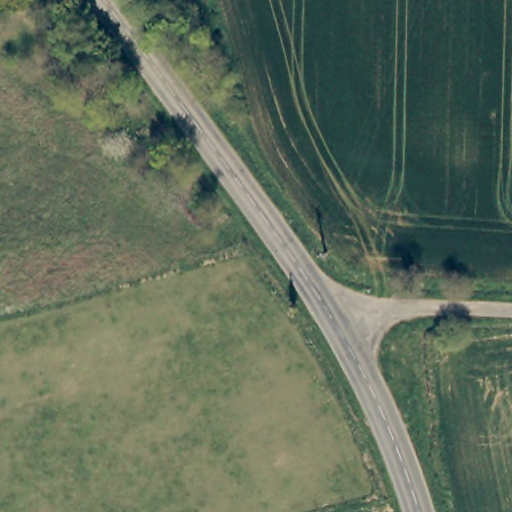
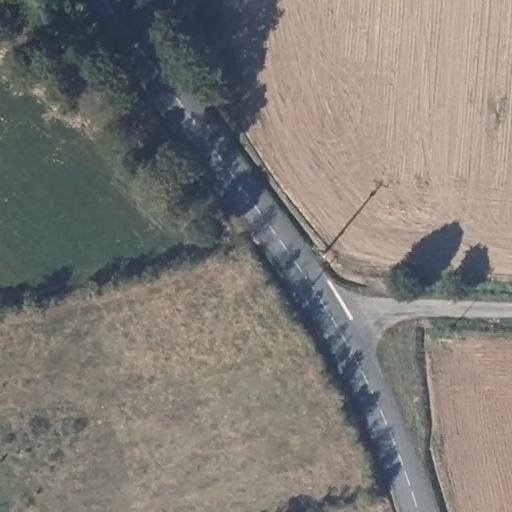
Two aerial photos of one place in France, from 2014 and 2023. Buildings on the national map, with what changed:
[]

